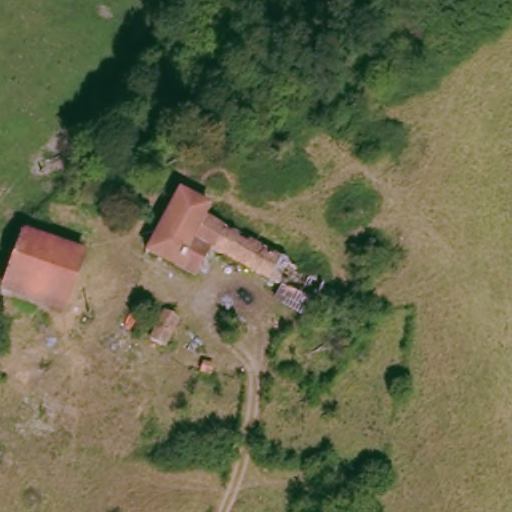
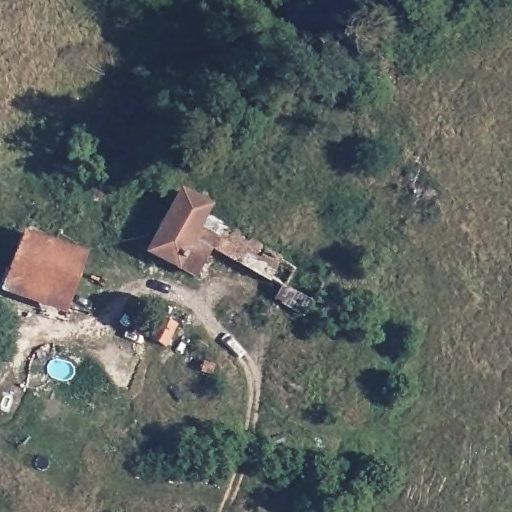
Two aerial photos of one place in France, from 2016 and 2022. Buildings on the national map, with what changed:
unchanged [(206,219),(324,285),(316,304),(303,313),(279,299),(285,287),(213,247),(199,274),(150,250),(181,190),(212,207),(206,219)]
unchanged [(25,239),(87,259),(69,312),(8,290),(25,239)]
unchanged [(96,249),(120,257),(116,269),(92,259),(96,249)]
unchanged [(164,312),(178,318),(164,346),(151,339),(164,312)]

